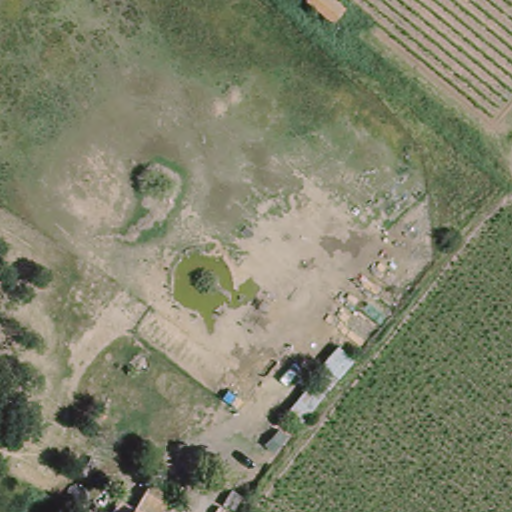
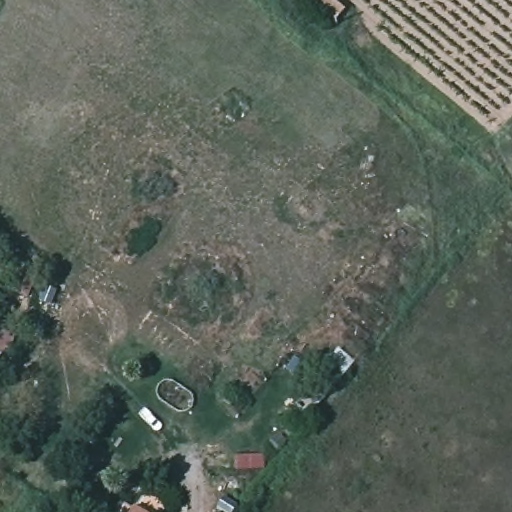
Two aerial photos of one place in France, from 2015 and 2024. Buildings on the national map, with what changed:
unchanged [(345,4),(333,19),(309,0),(341,0),(345,4)]
unchanged [(174,491),(162,512),(130,512),(147,481),(174,491)]

